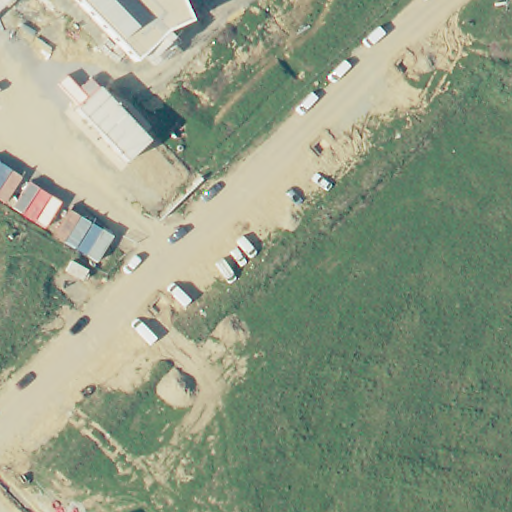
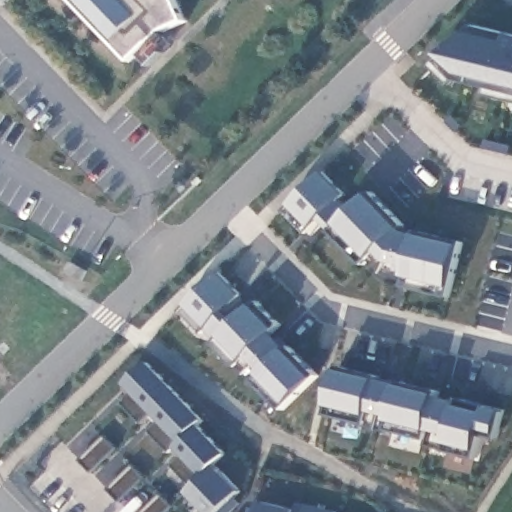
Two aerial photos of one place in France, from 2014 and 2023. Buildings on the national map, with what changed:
unchanged [(9,0),(0,8),(0,0),(9,0)]
unchanged [(164,32),(134,61),(75,0),(180,0),(190,21),(164,32)]
new [(491,87),(457,79),(451,83),(432,65),(446,54),(473,25),(512,33),(512,99),(488,94),(491,87)]
new [(346,194),(338,201),(348,211),(370,192),(402,227),(417,234),(462,245),(453,287),(450,296),(405,286),(407,277),(382,272),(369,260),(362,265),(320,218),(310,227),(303,232),(282,211),(289,205),(325,172),(346,194)]
new [(282,410),(255,382),(237,366),(215,344),(222,335),(209,326),(202,333),(180,311),(185,306),(220,271),(242,295),(224,310),(237,318),(254,303),(278,327),(275,331),(287,347),(316,377),(282,410)]
new [(203,418),(199,422),(227,452),(215,463),(203,476),(192,487),(172,466),(179,458),(172,451),(168,452),(149,430),(155,423),(148,416),(142,423),(120,402),(132,392),(123,384),(147,360),(203,418)]
new [(499,433),(482,430),(477,451),(475,457),(445,450),(427,446),(427,437),(367,423),(327,415),(328,405),(337,368),(377,379),(398,383),(438,395),(460,401),(458,405),(486,411),(487,406),(504,411),(499,433)]
new [(241,491),(220,512),(207,512),(187,492),(215,463),(241,491)]
new [(293,509),(297,501),(342,512),(248,512),(250,507),(259,509),(262,501),(293,509)]

